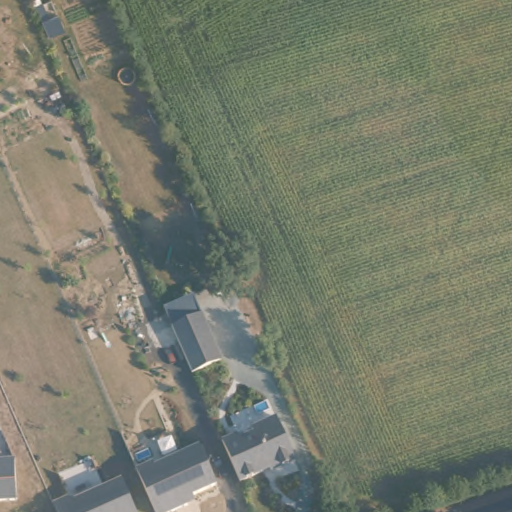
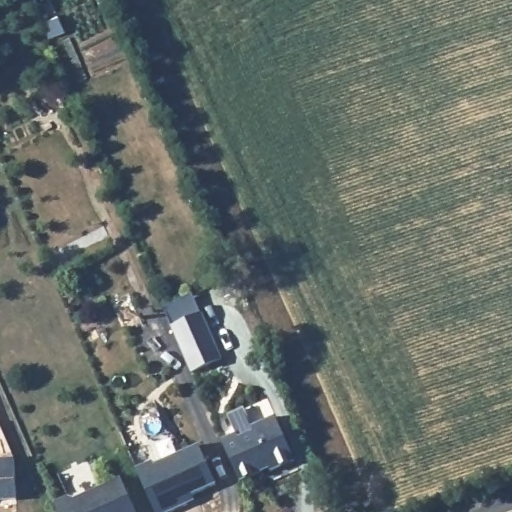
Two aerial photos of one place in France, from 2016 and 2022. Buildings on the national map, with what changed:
unchanged [(169,328),(175,326),(199,315),(219,361),(195,371),(189,373),(169,328)]
unchanged [(219,442),(225,440),(235,435),(237,440),(251,433),(249,429),(273,418),(292,462),(268,472),(265,465),(258,467),(261,472),(243,480),(237,482),(219,442)]
unchanged [(152,464),(197,444),(214,484),(189,495),(188,493),(182,496),(186,503),(167,512),(153,512),(134,468),(150,461),(152,464)]
unchanged [(13,499),(0,500),(0,458),(11,458),(13,499)]
unchanged [(52,502),(67,496),(73,498),(120,477),(135,512),(57,512),(52,502)]

